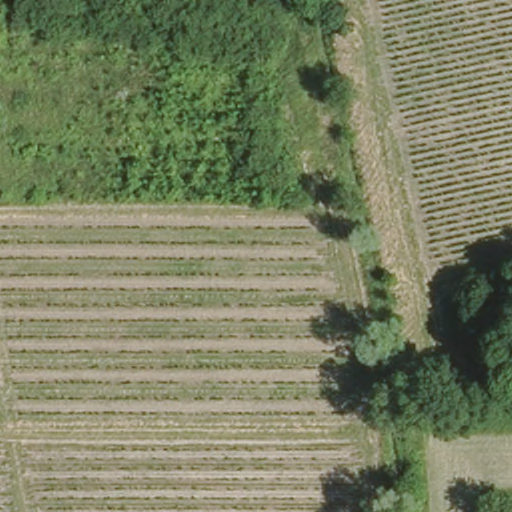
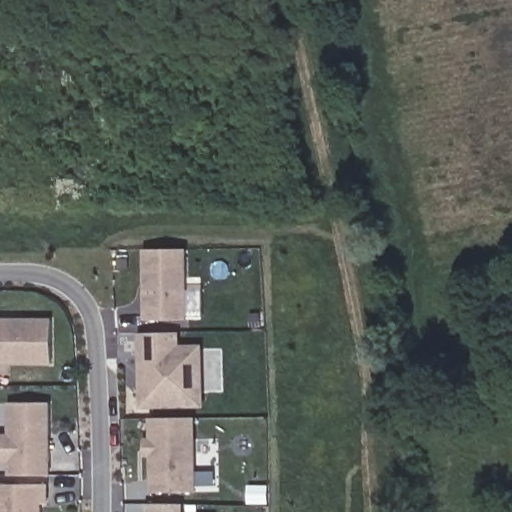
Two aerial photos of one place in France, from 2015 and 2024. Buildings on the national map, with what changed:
new [(144,319),(144,249),(187,249),(187,318),(144,319)]
new [(54,365),(0,366),(0,318),(53,318),(54,365)]
new [(141,408),(139,333),(180,332),(180,345),(203,345),(205,407),(141,408)]
new [(9,475),(9,462),(0,462),(0,435),(9,435),(9,403),(51,403),(52,475),(9,475)]
new [(144,458),(144,438),(150,438),(150,418),(197,417),(199,490),(199,491),(150,492),(150,457),(144,458)]
new [(43,512),(0,512),(0,484),(49,483),(50,504),(43,503),(43,512)]
new [(178,503),(178,512),(149,512),(149,503),(178,503)]

